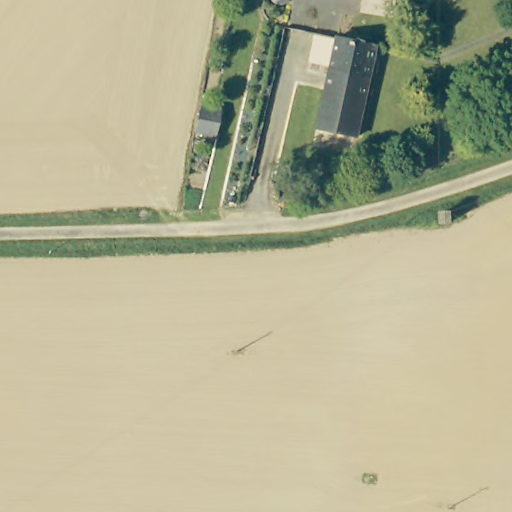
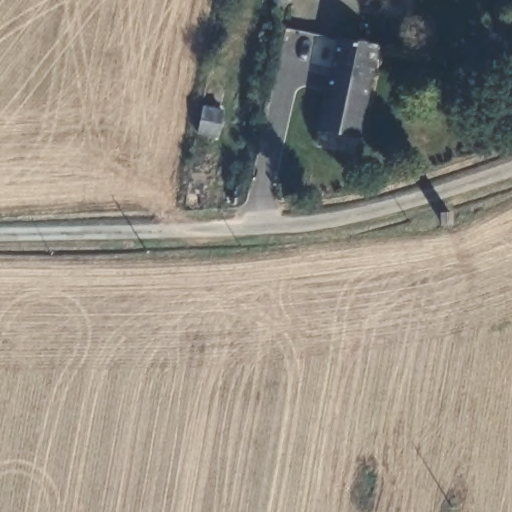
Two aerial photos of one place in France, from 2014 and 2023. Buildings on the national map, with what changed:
unchanged [(276,13),(270,10),(268,3),(269,0),(289,0),(290,2),(287,9),(282,13),(276,13)]
unchanged [(358,138),(320,130),(338,40),(377,48),(358,138)]
unchanged [(214,105),(225,108),(220,134),(207,131),(199,129),(205,103),(214,105)]

